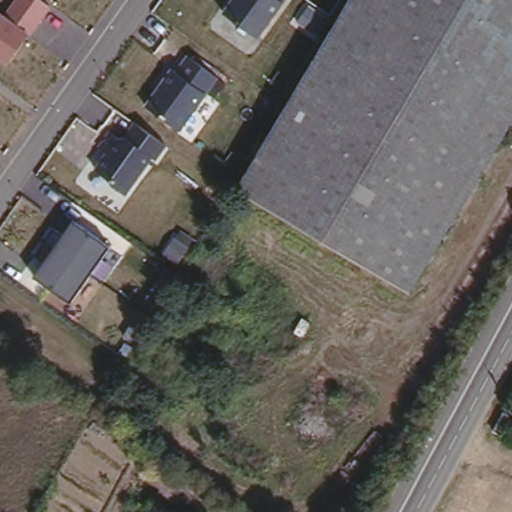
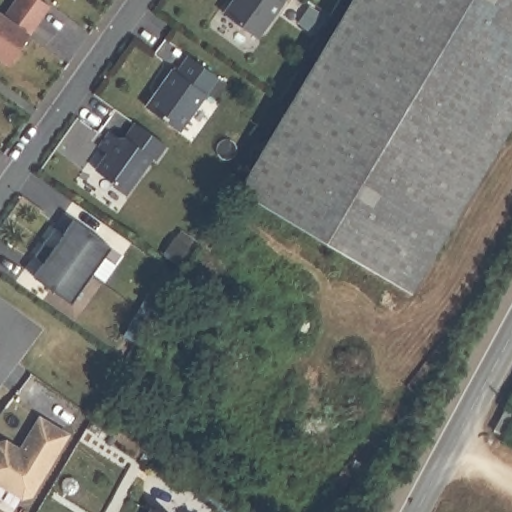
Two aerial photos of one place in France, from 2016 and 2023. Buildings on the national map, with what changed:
unchanged [(49,7),(8,66),(0,59),(0,11),(4,14),(14,0),(41,0),(49,7)]
unchanged [(259,40),(223,12),(232,0),(287,0),(259,40)]
unchanged [(512,119),(413,289),(234,185),(345,0),(512,0),(512,119)]
unchanged [(169,69),(173,71),(187,52),(216,75),(179,131),(144,105),(169,69)]
unchanged [(106,152),(98,147),(108,132),(116,137),(124,137),(133,124),(164,146),(155,161),(150,157),(125,195),(93,171),(106,152)]
unchanged [(111,247),(70,305),(33,277),(72,222),(111,247)]
unchanged [(512,420),(501,434),(491,427),(505,403),(512,408),(512,420)]
new [(4,443),(18,452),(37,419),(66,436),(30,498),(21,500),(0,487),(0,444),(4,443)]
unchanged [(141,512),(145,505),(159,512),(141,512)]

